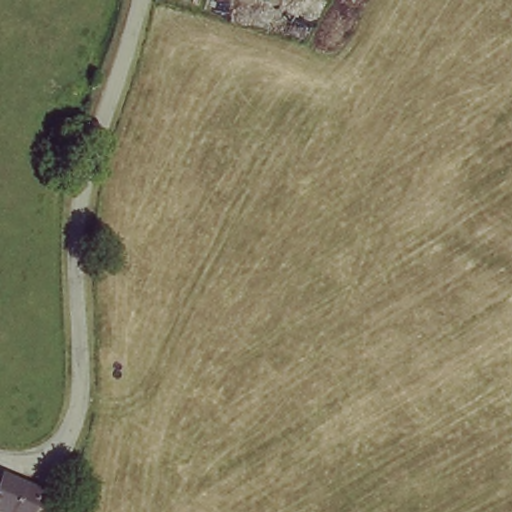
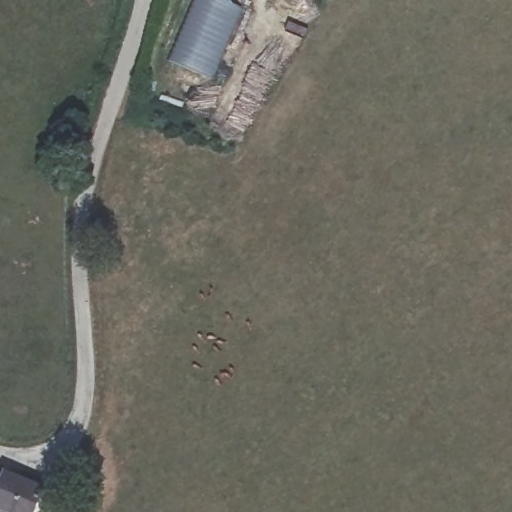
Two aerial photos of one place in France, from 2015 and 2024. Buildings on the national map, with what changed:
new [(229,0),(237,2),(209,77),(169,60),(191,0),(229,0)]
unchanged [(1,472),(43,488),(39,501),(34,512),(0,512),(0,474),(1,472)]

